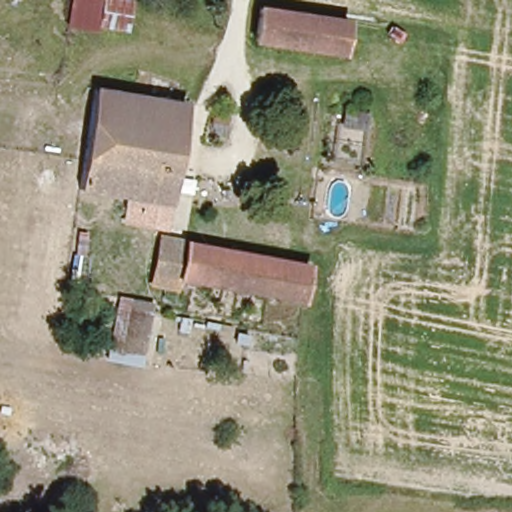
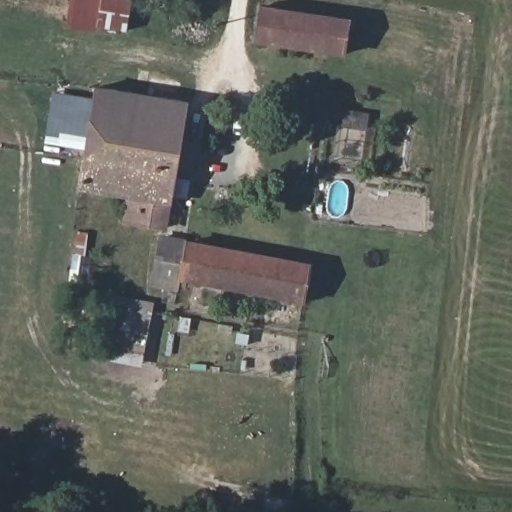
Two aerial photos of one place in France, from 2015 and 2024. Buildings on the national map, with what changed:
unchanged [(97,25),(97,32),(64,29),(68,0),(135,0),(130,31),(97,25)]
unchanged [(258,37),(263,4),(352,17),(345,51),(258,37)]
unchanged [(190,100),(172,219),(138,214),(141,188),(84,178),(100,85),(190,100)]
new [(45,143),(54,92),(97,100),(89,150),(45,143)]
unchanged [(187,278),(185,290),(183,290),(158,285),(159,274),(163,249),(165,235),(187,239),(307,261),(301,299),(187,278)]
unchanged [(142,366),(113,361),(126,296),(157,300),(142,366)]

